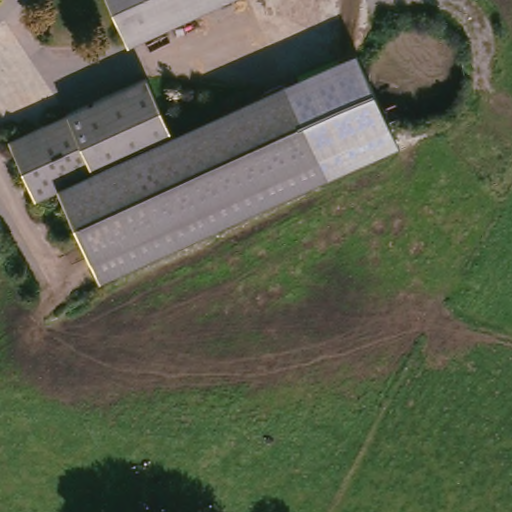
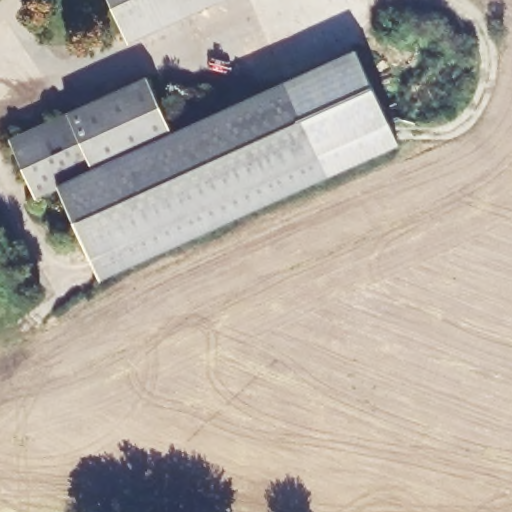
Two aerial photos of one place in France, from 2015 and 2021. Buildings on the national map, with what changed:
unchanged [(104,0),(223,0),(127,47),(104,0)]
unchanged [(397,144),(315,181),(270,89),(355,50),(397,144)]
unchanged [(315,181),(103,284),(59,189),(34,200),(9,142),(144,78),(172,137),(270,89),(315,181)]

